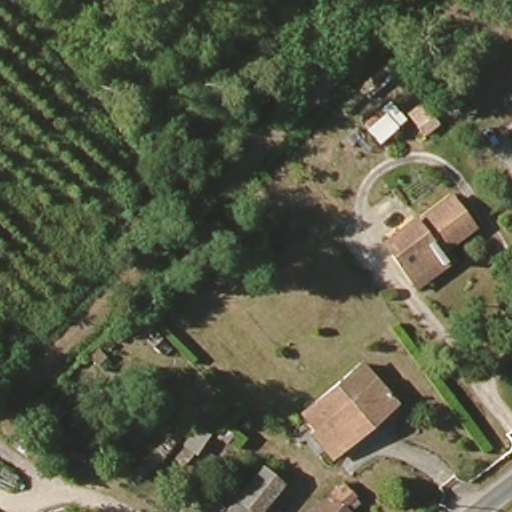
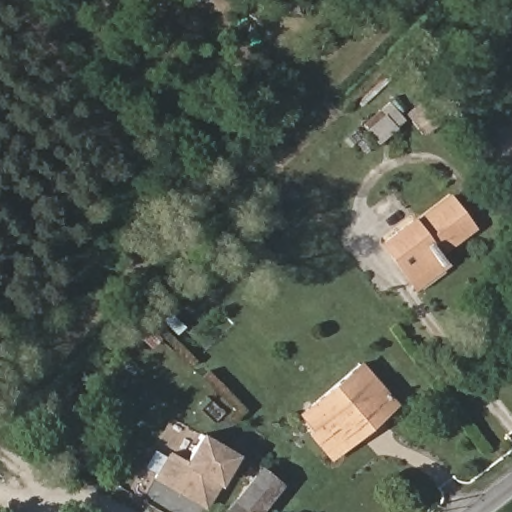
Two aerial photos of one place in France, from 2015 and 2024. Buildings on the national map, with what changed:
unchanged [(425,270),(415,279),(396,257),(387,248),(391,244),(381,233),(388,228),(409,211),(412,215),(445,188),(470,218),(438,242),(436,246),(443,254),(425,270)]
unchanged [(305,433),(312,428),(297,410),(313,396),(352,360),(388,399),(371,413),(367,409),(347,428),(352,432),(340,444),(328,455),(305,433)]
unchanged [(95,409),(115,428),(103,439),(83,419),(95,409)]
demolished [(209,438),(194,449),(184,439),(201,427),(209,438)]
new [(200,432),(238,454),(218,486),(205,509),(153,479),(169,450),(184,459),(200,432)]
unchanged [(255,459),(285,478),(261,512),(225,512),(220,509),(255,459)]
unchanged [(336,478),(352,494),(336,509),(339,512),(305,512),(336,478)]

